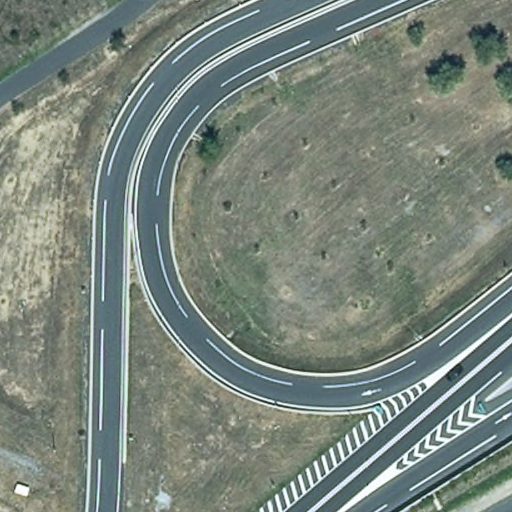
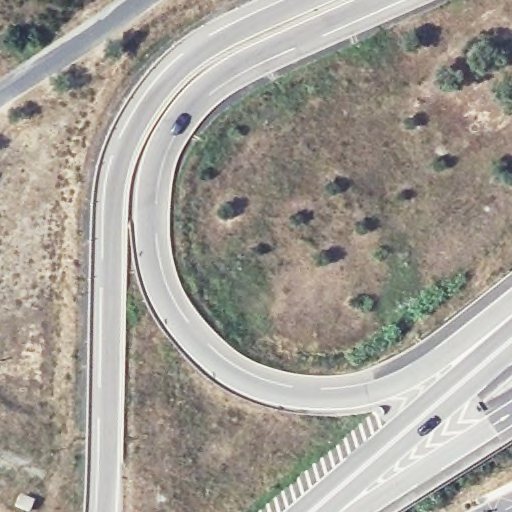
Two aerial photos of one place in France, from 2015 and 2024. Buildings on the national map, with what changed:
[]

